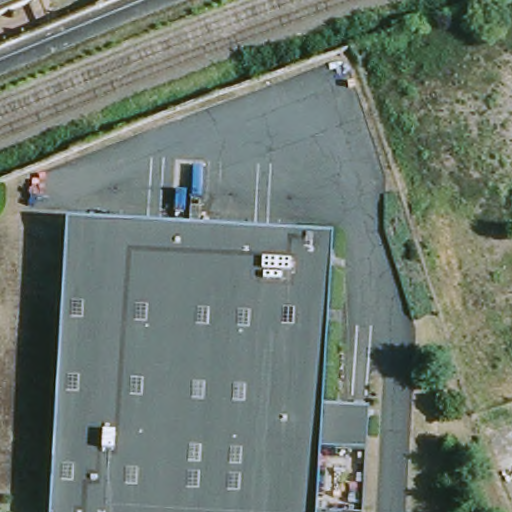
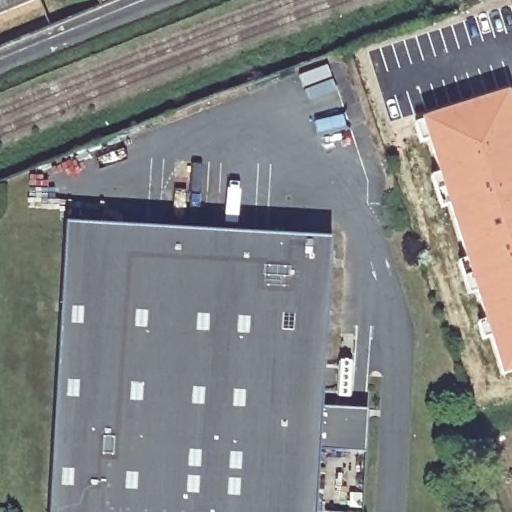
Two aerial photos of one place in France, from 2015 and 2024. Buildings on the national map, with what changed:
unchanged [(99,1),(98,0),(100,0),(99,1)]
new [(512,370),(505,372),(436,151),(512,125),(512,370)]
unchanged [(347,450),(319,447),(315,512),(48,512),(64,224),(330,239),(322,406),(350,407),(366,408),(363,451),(347,450)]

